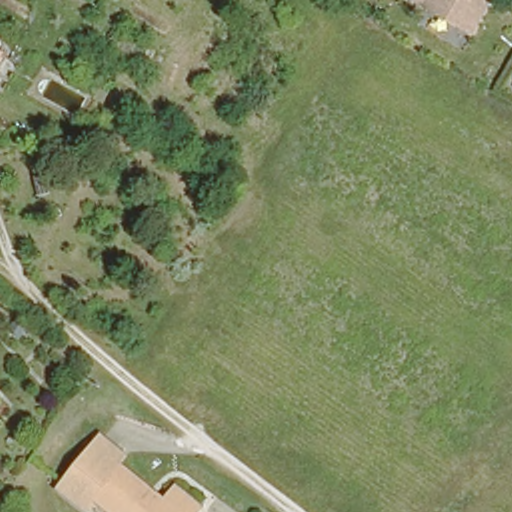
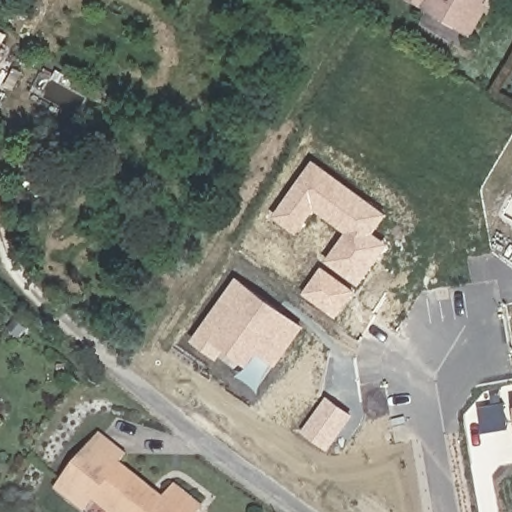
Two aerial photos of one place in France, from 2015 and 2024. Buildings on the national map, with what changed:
unchanged [(476,2),(484,7),(469,33),(413,0),(477,0),(476,2)]
unchanged [(6,40),(0,47),(0,35),(6,40)]
new [(313,159),(390,214),(377,233),(392,244),(362,286),(327,261),(347,232),(316,210),(298,235),(274,217),(313,159)]
new [(322,266),(357,290),(337,318),(303,293),(322,266)]
new [(306,326),(277,367),(257,353),(248,367),(226,350),(219,360),(192,340),(237,276),(306,326)]
new [(328,451),(301,432),(327,396),(353,416),(328,451)]
unchanged [(89,488),(81,496),(78,500),(56,482),(52,479),(70,457),(96,426),(122,448),(117,455),(112,460),(144,485),(142,487),(147,491),(153,485),(155,483),(163,489),(168,483),(191,502),(185,509),(188,512),(117,512),(97,495),(89,488)]

